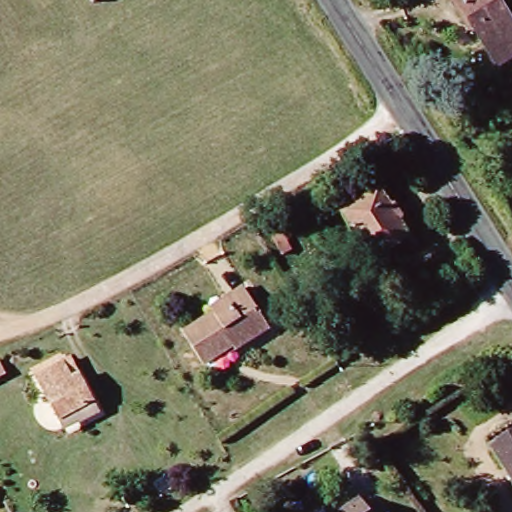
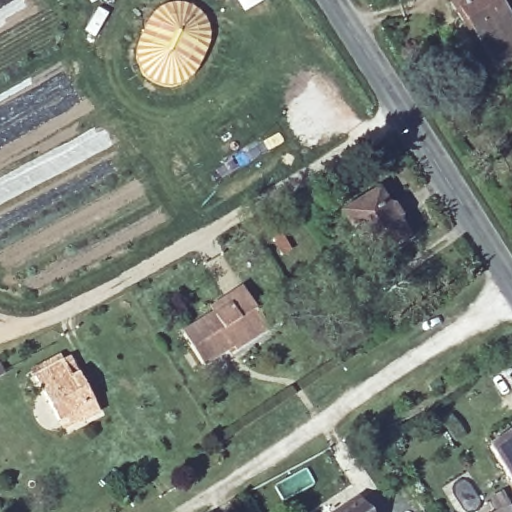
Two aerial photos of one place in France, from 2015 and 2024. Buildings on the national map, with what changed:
unchanged [(90,0),(97,0),(92,2),(90,0)]
new [(215,0),(218,0),(215,1),(215,0)]
new [(237,0),(264,0),(244,12),(237,0)]
unchanged [(460,27),(445,0),(447,0),(480,0),(481,1),(484,0),(497,0),(512,25),(512,55),(495,66),(469,24),(460,27)]
new [(162,84),(162,79),(157,78),(154,83),(138,65),(139,41),(151,16),(166,4),(190,11),(210,25),(211,31),(211,45),(196,71),(177,85),(162,84)]
unchanged [(409,242),(399,248),(401,250),(376,265),(342,209),(376,188),(409,242)]
unchanged [(259,235),(250,222),(267,213),(275,227),(259,235)]
unchanged [(269,329),(235,351),(233,347),(203,366),(182,336),(214,315),(215,318),(231,308),(226,300),(243,289),(269,329)]
unchanged [(58,421),(35,376),(62,362),(70,358),(78,375),(98,413),(80,422),(63,428),(58,421)]
unchanged [(512,433),(512,483),(489,447),(512,433)]
unchanged [(359,498),(368,512),(339,512),(359,498)]

